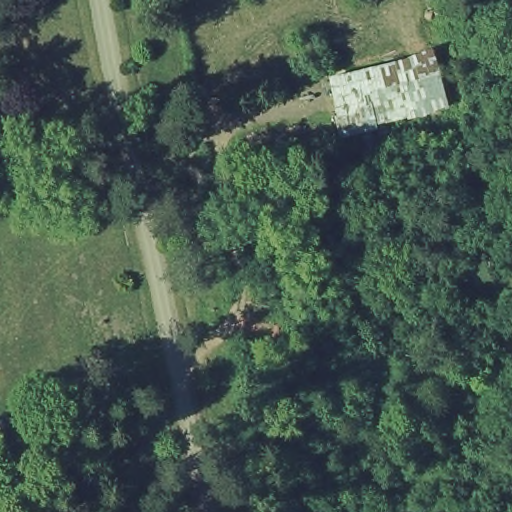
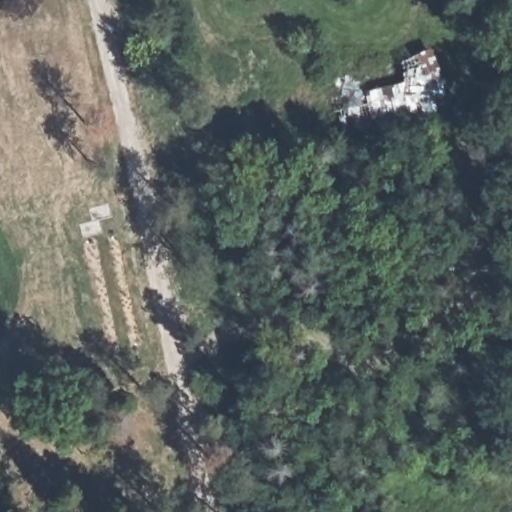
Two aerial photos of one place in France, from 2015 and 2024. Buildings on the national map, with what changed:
unchanged [(453,105),(339,136),(325,75),(434,44),(453,105)]

